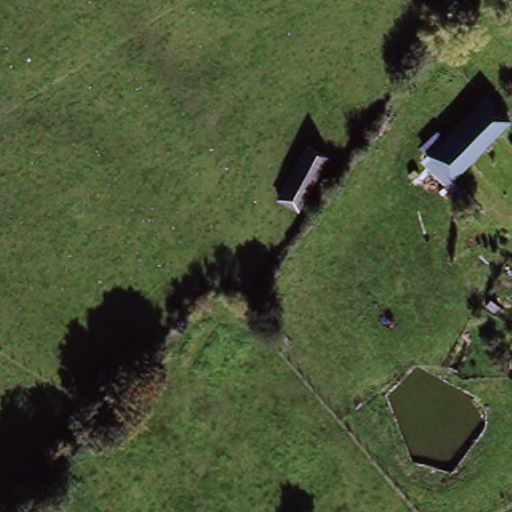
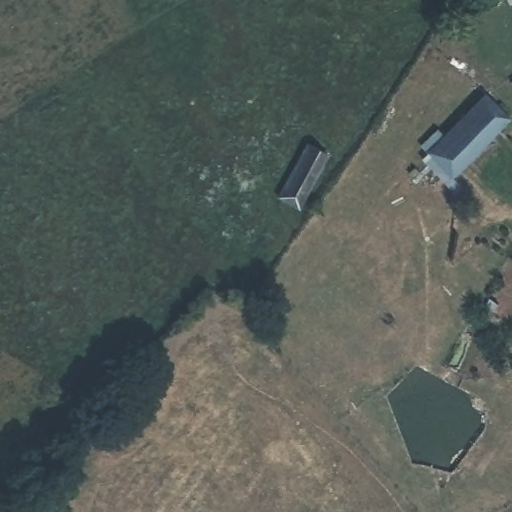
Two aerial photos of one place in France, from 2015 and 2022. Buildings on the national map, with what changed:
unchanged [(489,102),(502,118),(512,131),(465,169),(447,183),(424,155),(441,140),(489,102)]
unchanged [(295,212),(278,203),(305,155),(322,164),(295,212)]

